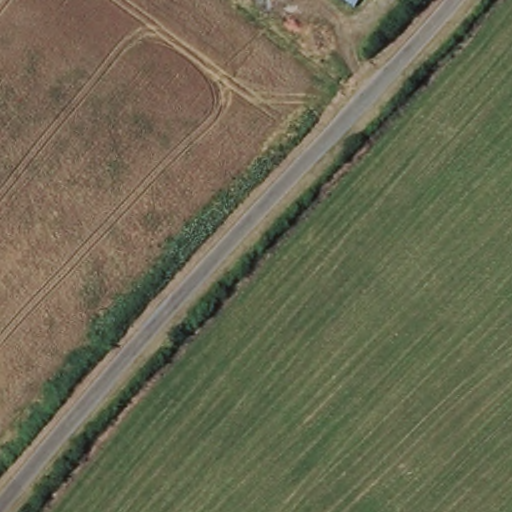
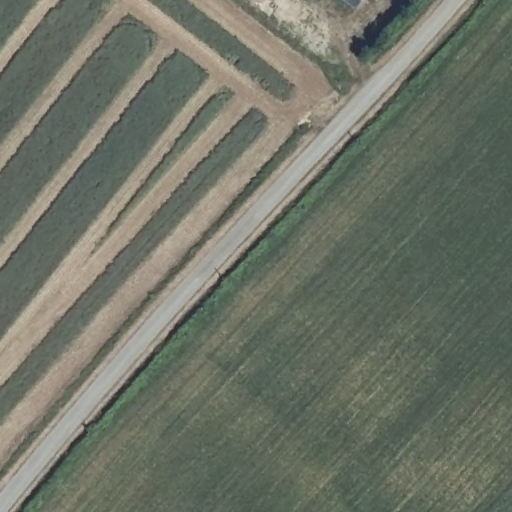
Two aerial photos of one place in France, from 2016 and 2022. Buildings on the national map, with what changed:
unchanged [(356,6),(346,0),(360,0),(356,6)]

